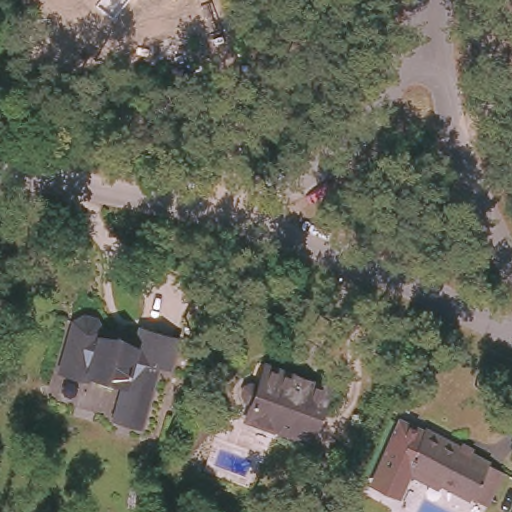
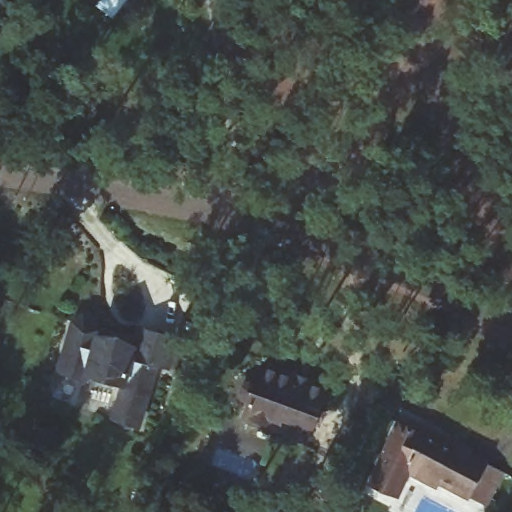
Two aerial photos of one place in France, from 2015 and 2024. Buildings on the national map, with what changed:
unchanged [(125,379),(120,379),(113,383),(97,378),(98,374),(88,371),(86,376),(62,368),(73,319),(85,313),(90,313),(98,324),(96,331),(132,339),(137,320),(176,329),(167,363),(157,361),(140,423),(115,416),(125,379)]
unchanged [(273,424),(271,429),(242,416),(249,398),(242,395),(239,390),(240,383),(243,378),(255,382),(260,367),(262,358),(327,380),(325,387),(306,435),(273,424)]
unchanged [(407,464),(396,487),(370,475),(400,412),(424,423),(425,422),(501,463),(485,496),(439,471),(435,478),(407,464)]

